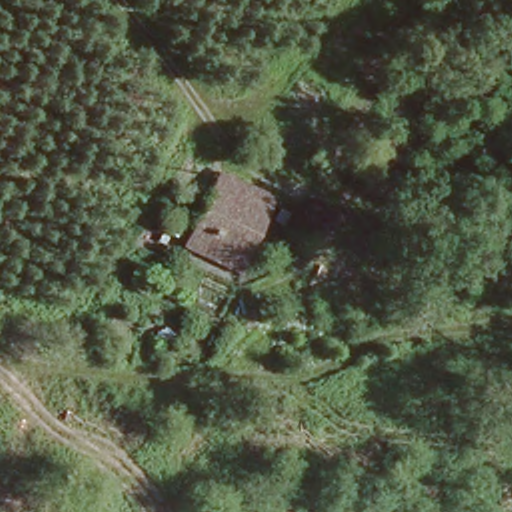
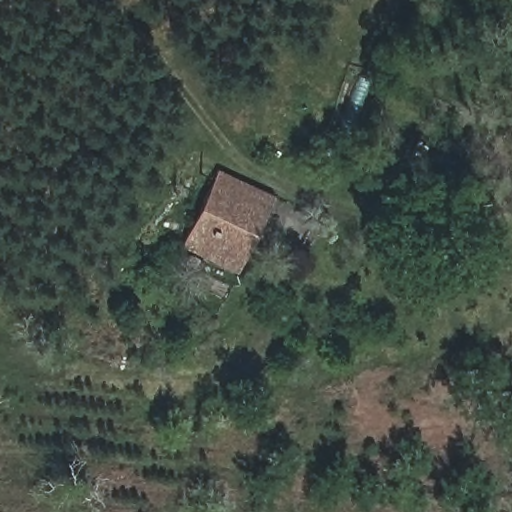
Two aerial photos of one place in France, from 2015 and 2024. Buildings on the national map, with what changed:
unchanged [(181,240),(215,168),(263,189),(230,262),(181,240)]
unchanged [(184,308),(185,307),(202,267),(235,280),(216,322),(184,308)]
unchanged [(235,461),(229,491),(201,486),(207,457),(235,461)]

